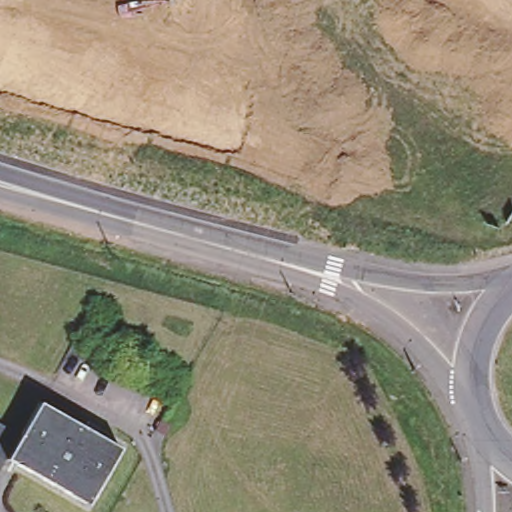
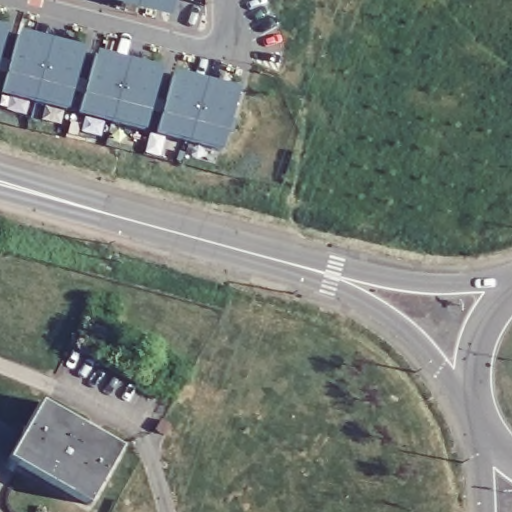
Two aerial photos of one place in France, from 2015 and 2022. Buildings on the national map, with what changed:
new [(6,26),(0,51),(0,25),(6,26)]
new [(158,132),(163,113),(150,109),(145,128),(80,111),(85,93),(72,89),(67,108),(3,91),(8,73),(0,70),(0,59),(11,61),(19,30),(83,47),(76,77),(89,79),(96,50),(161,68),(154,98),(167,100),(174,70),(238,87),(222,149),(158,132)]
unchanged [(36,397),(112,439),(83,493),(8,449),(36,397)]
unchanged [(0,447),(0,419),(11,426),(0,447)]

